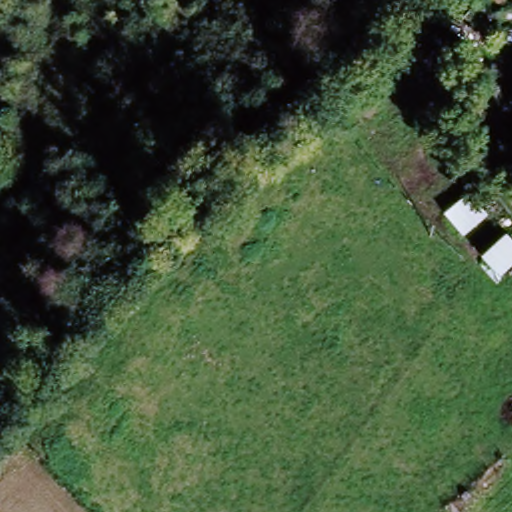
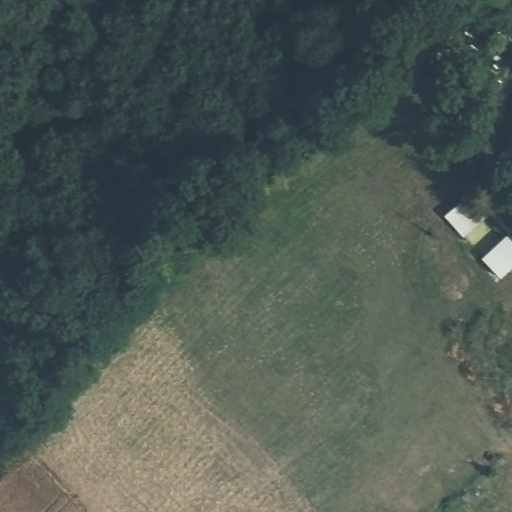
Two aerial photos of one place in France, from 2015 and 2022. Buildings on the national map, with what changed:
unchanged [(512,137),(512,175),(499,169),(512,137)]

